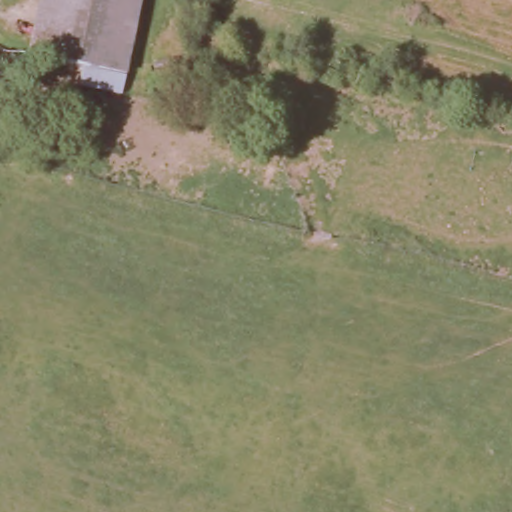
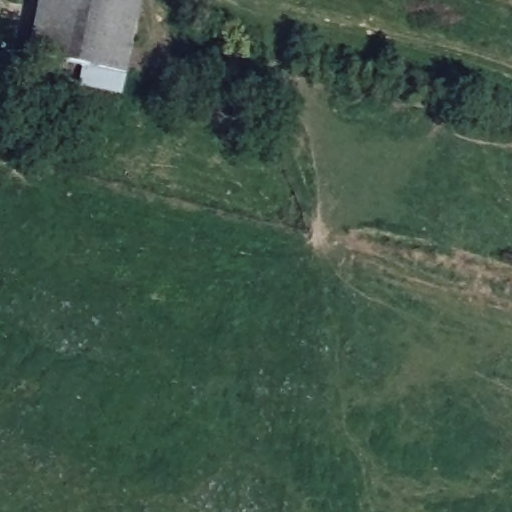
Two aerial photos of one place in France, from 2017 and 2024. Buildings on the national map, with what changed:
unchanged [(73,85),(77,65),(27,57),(36,0),(143,0),(122,95),(73,85)]

